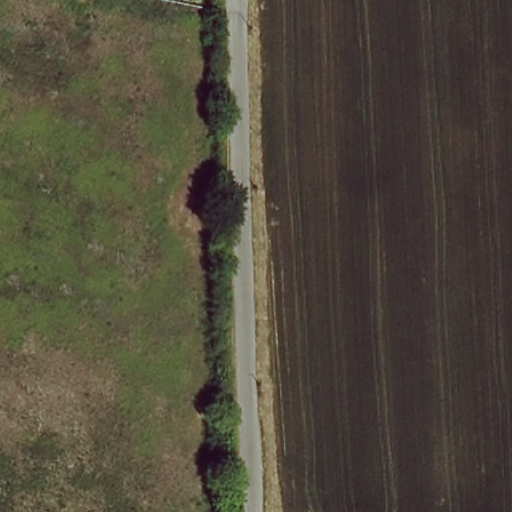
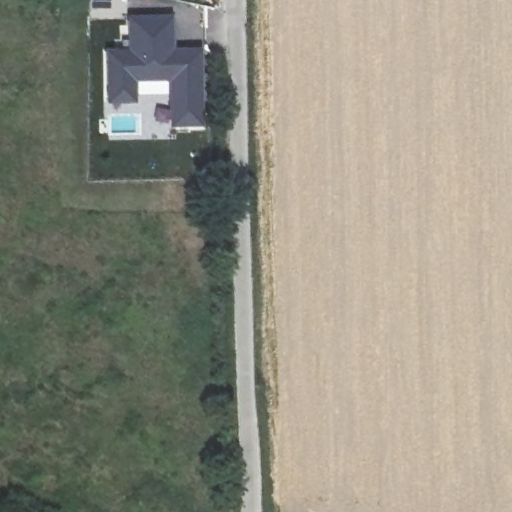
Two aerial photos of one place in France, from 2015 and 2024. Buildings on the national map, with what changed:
new [(125,47),(125,14),(173,13),(175,47),(201,46),(203,127),(169,128),(165,83),(137,84),(137,104),(105,105),(103,49),(125,47)]

